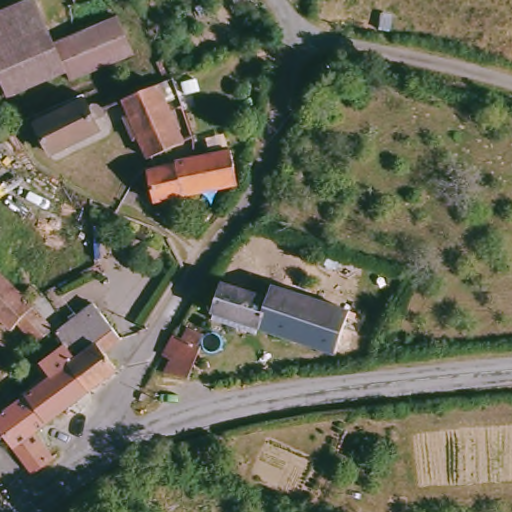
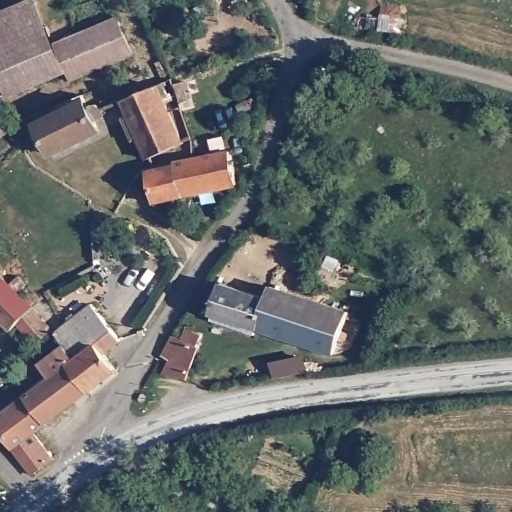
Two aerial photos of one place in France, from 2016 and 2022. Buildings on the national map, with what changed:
unchanged [(57,35),(121,10),(137,49),(68,78),(62,66),(10,88),(0,64),(0,4),(11,0),(42,0),(57,35)]
unchanged [(184,137),(150,151),(123,91),(157,76),(184,137)]
unchanged [(100,133),(52,153),(37,123),(84,101),(89,110),(100,133)]
unchanged [(229,145),(238,180),(153,198),(147,168),(179,161),(177,156),(190,153),(229,145)]
unchanged [(27,282),(31,284),(39,291),(32,301),(54,322),(36,339),(18,322),(11,328),(0,316),(0,270),(20,290),(27,282)]
unchanged [(266,280),(344,305),(327,348),(250,323),(247,330),(207,317),(209,309),(205,308),(215,279),(261,294),(266,280)]
unchanged [(118,366),(89,386),(68,361),(75,354),(63,340),(54,330),(62,324),(76,312),(90,301),(98,311),(117,337),(104,348),(118,366)]
unchanged [(186,330),(191,318),(203,322),(199,335),(203,336),(190,368),(167,364),(172,353),(164,346),(178,328),(186,330)]
unchanged [(75,354),(68,361),(89,386),(45,416),(25,392),(54,370),(42,358),(63,340),(75,354)]
unchanged [(0,360),(2,362),(0,364),(0,360)]
unchanged [(30,429),(51,454),(31,470),(0,432),(0,411),(25,392),(45,416),(30,429)]

